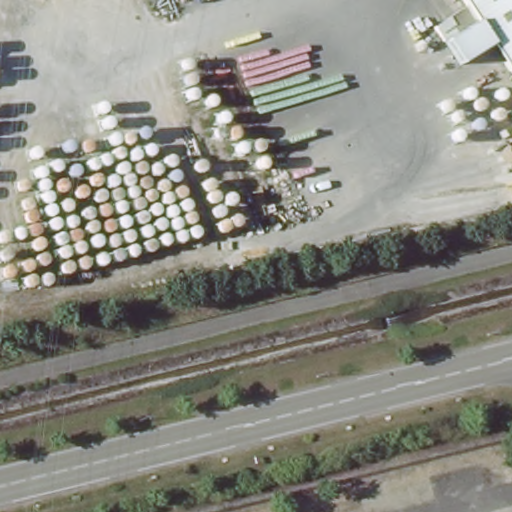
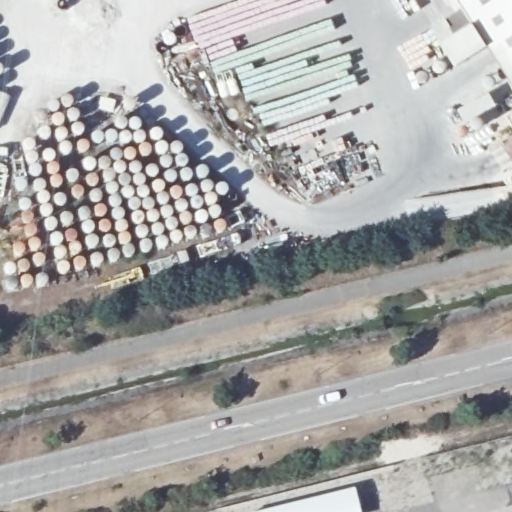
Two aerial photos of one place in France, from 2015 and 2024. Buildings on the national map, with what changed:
unchanged [(511,85),(456,0),(512,0),(512,87),(511,85)]
unchanged [(505,113),(512,108),(512,125),(505,113)]
new [(355,488),(360,512),(258,512),(355,488)]

